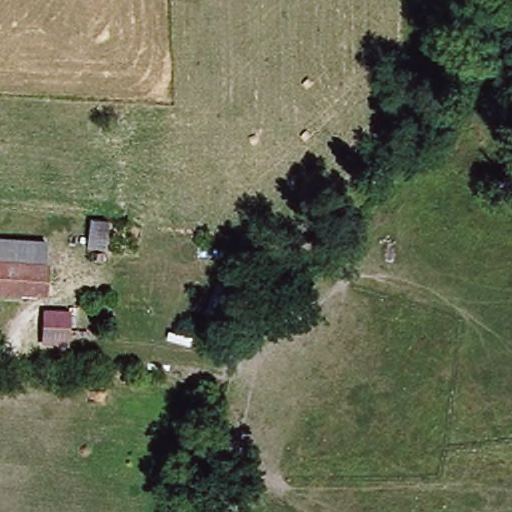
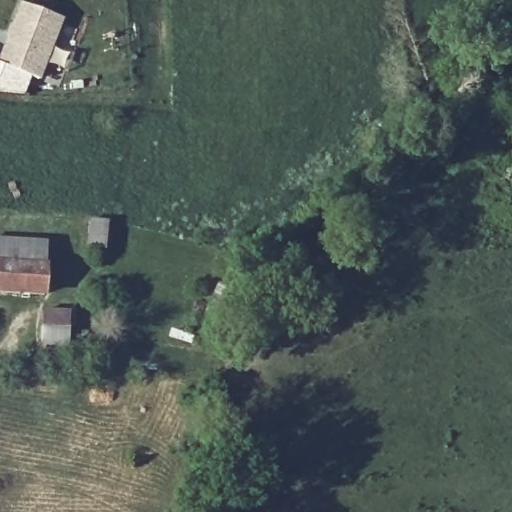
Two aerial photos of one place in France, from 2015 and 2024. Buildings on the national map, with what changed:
new [(41,82),(0,66),(0,53),(20,4),(64,22),(41,82)]
unchanged [(85,222),(85,209),(86,185),(103,185),(102,211),(101,223),(85,222)]
unchanged [(45,298),(0,295),(0,243),(48,248),(45,298)]
unchanged [(41,334),(42,303),(67,304),(65,336),(41,334)]

